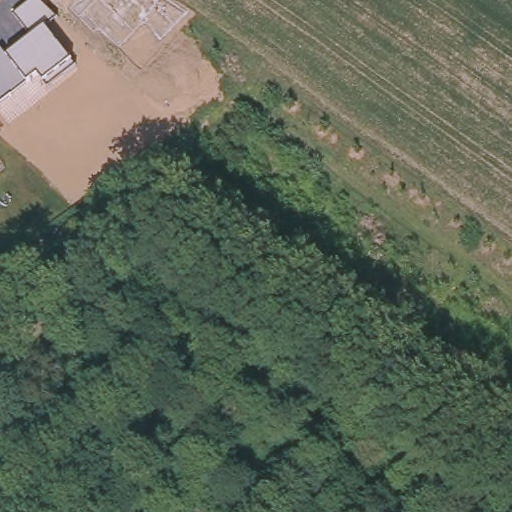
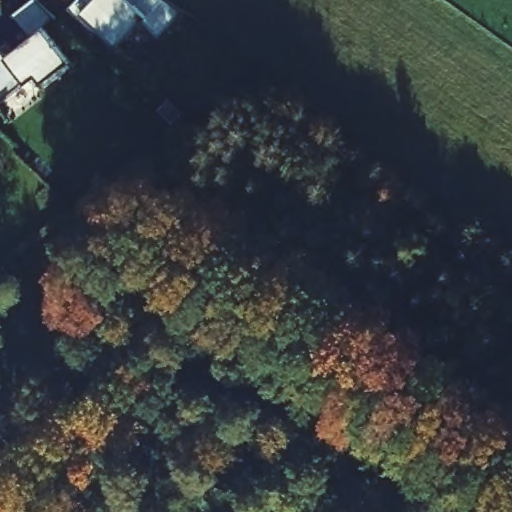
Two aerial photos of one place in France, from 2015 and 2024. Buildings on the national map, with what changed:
unchanged [(56,16),(45,27),(71,60),(75,65),(47,85),(43,81),(38,74),(27,81),(0,102),(0,52),(2,50),(7,55),(32,37),(13,13),(30,0),(39,0),(56,16)]
unchanged [(187,10),(158,38),(144,20),(118,45),(100,28),(93,30),(70,7),(77,0),(172,0),(187,10)]

